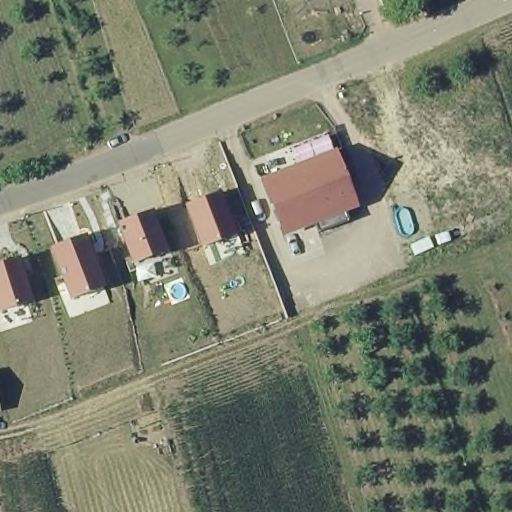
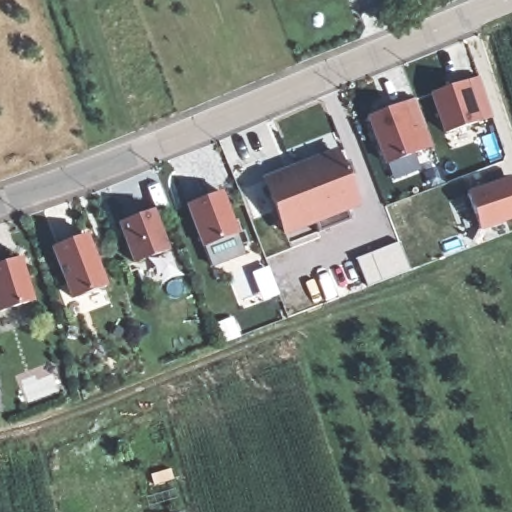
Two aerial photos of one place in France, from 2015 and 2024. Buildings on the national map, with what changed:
new [(491,117),(481,122),(443,133),(429,95),(466,82),(478,78),(491,117)]
new [(424,151),(386,166),(366,117),(404,105),(414,100),(424,126),(432,147),(424,151)]
unchanged [(337,149),(361,207),(346,212),(349,220),(321,232),(317,222),(285,236),(261,177),(337,149)]
new [(510,176),(512,181),(512,218),(479,230),(466,191),(510,176)]
unchanged [(221,192),(238,234),(205,247),(188,205),(221,192)]
unchanged [(153,211),(169,251),(136,263),(120,225),(153,211)]
unchanged [(87,235),(106,286),(73,300),(53,248),(87,235)]
unchanged [(33,300),(0,314),(0,265),(20,257),(33,300)]

